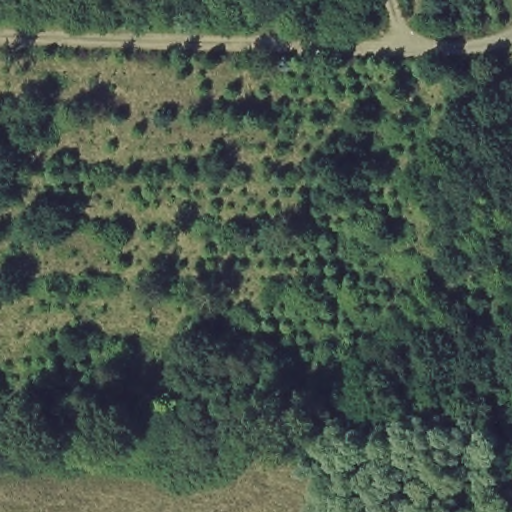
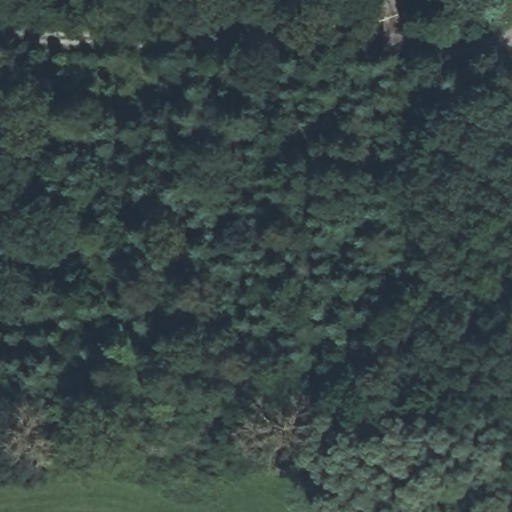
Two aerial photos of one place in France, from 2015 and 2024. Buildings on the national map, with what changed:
[]

